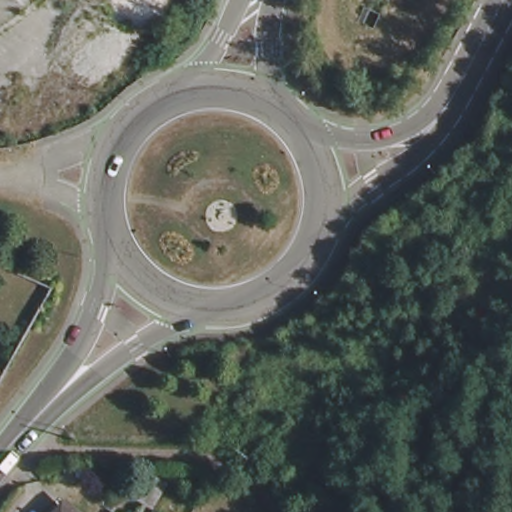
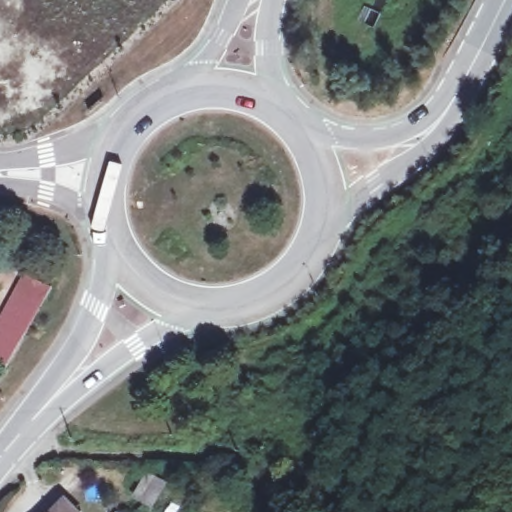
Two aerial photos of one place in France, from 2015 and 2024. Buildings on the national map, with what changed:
new [(0,317),(25,273),(52,287),(6,366),(0,363),(0,317)]
unchanged [(168,486),(154,506),(135,497),(148,478),(168,486)]
unchanged [(59,508),(63,512),(56,512),(59,508)]

